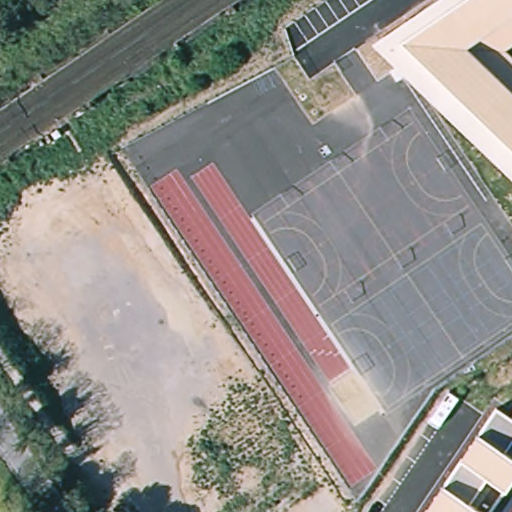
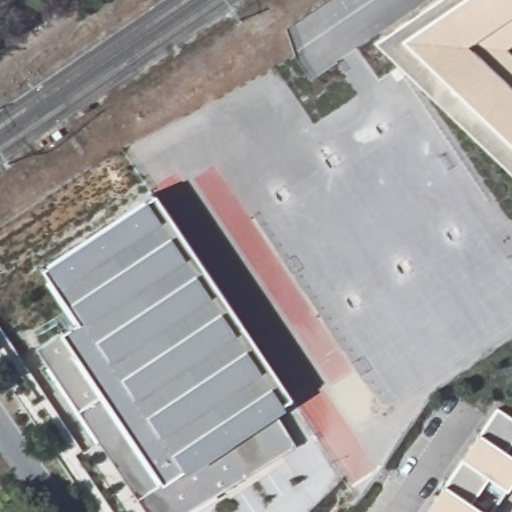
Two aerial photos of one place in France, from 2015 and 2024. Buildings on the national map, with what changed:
unchanged [(371,44),(436,0),(512,0),(512,46),(505,51),(512,58),(512,178),(371,44)]
new [(295,447),(215,497),(216,499),(195,512),(144,512),(98,443),(95,445),(45,370),(49,368),(36,350),(60,335),(75,324),(40,271),(45,267),(43,265),(141,200),(143,203),(153,197),(289,399),(279,406),(281,410),(275,414),(295,447)]
unchanged [(497,410),(512,420),(512,444),(506,454),(512,458),(512,482),(505,493),(487,481),(470,505),(480,512),(427,512),(497,410)]
unchanged [(0,499),(9,512),(0,512),(0,499)]

